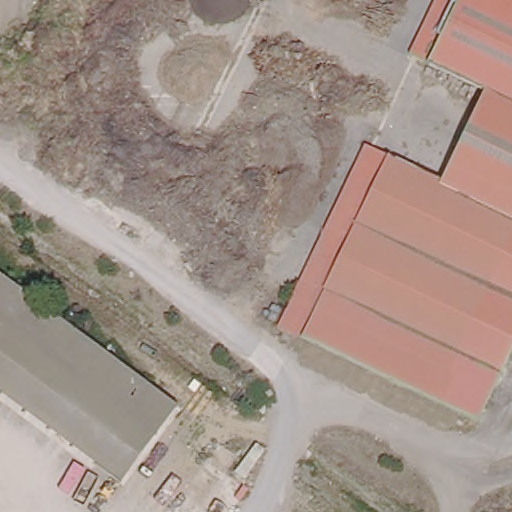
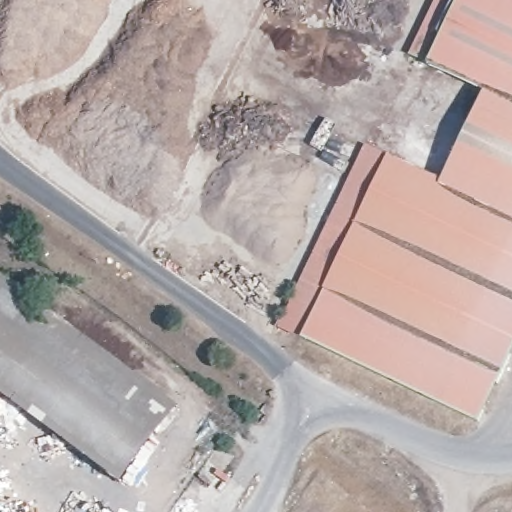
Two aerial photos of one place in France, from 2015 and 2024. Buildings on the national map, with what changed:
unchanged [(512,105),(486,93),(484,92),(487,86),(430,57),(416,51),(439,0),(512,0),(512,105)]
unchanged [(433,402),(301,339),(278,328),(365,147),(440,183),(484,92),(486,93),(512,105),(512,352),(478,424),(433,402)]
unchanged [(179,405),(121,483),(0,393),(0,271),(179,405)]

